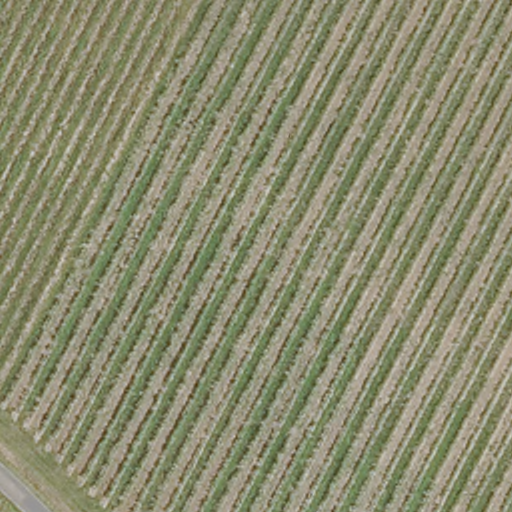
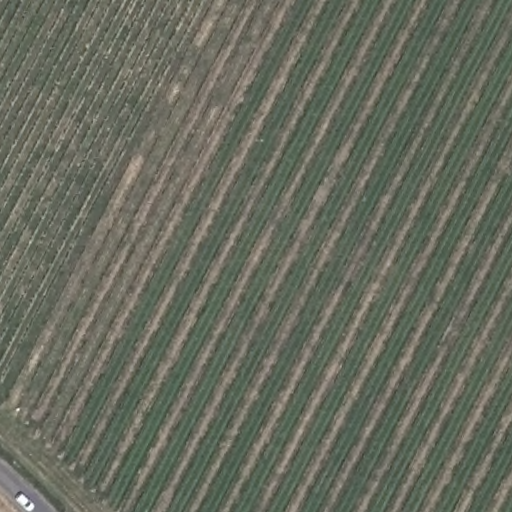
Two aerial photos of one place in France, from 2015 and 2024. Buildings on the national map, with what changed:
[]

